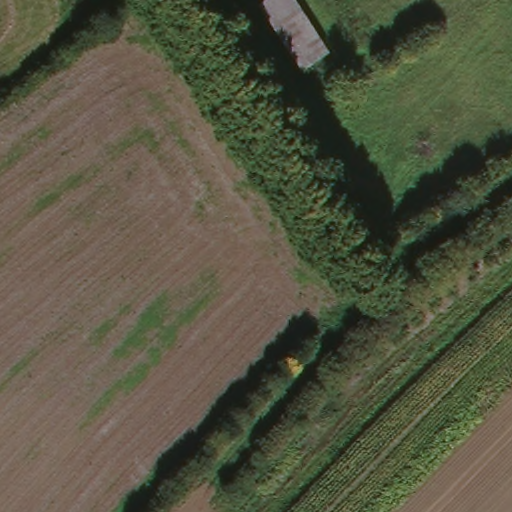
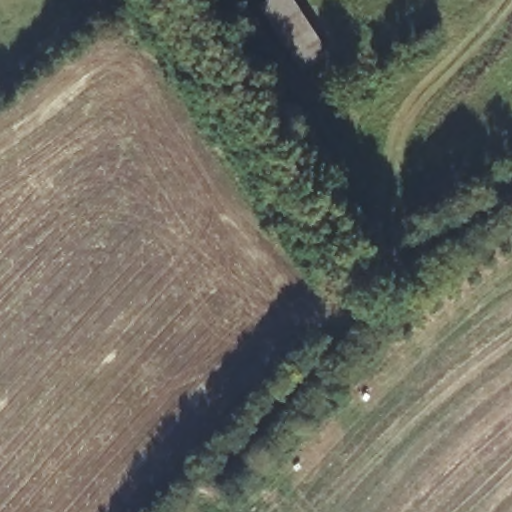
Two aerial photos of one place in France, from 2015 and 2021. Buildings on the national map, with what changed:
unchanged [(303,0),(337,49),(307,69),(265,4),(270,0),(303,0)]

